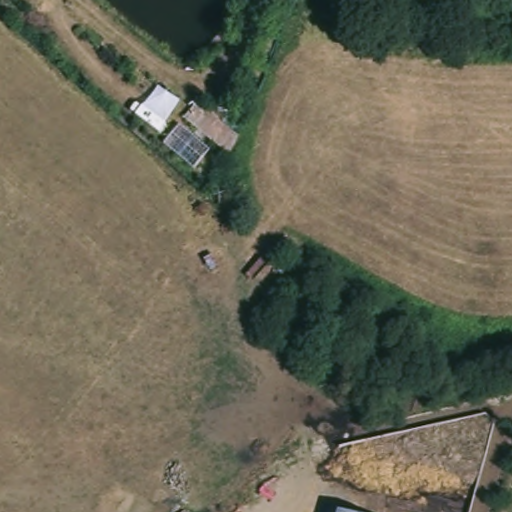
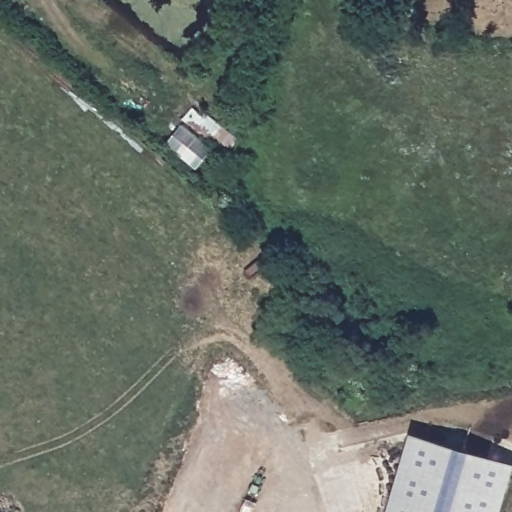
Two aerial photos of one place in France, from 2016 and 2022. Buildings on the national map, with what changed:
unchanged [(224,146),(209,134),(217,124),(233,138),(224,146)]
new [(501,512),(389,512),(412,435),(512,464),(512,473),(501,512)]

